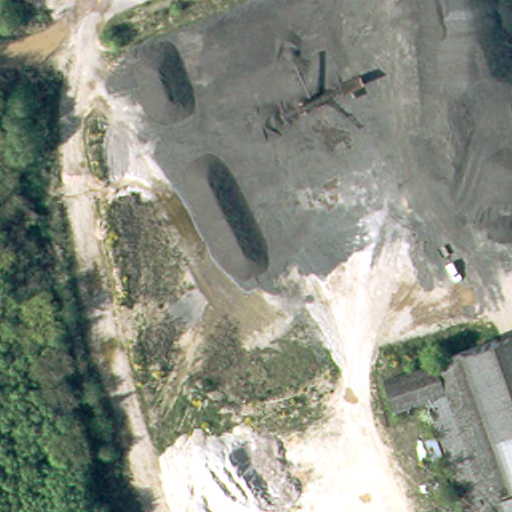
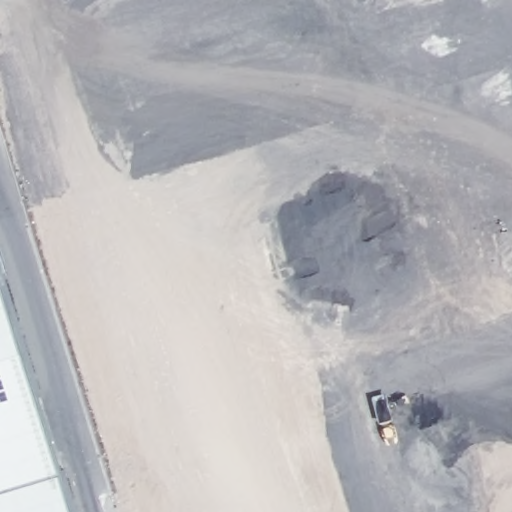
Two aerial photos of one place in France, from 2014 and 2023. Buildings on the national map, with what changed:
new [(0,276),(72,512),(0,512),(0,276)]
unchanged [(388,382),(437,364),(436,363),(512,335),(512,512),(472,512),(470,512),(430,403),(399,414),(388,382)]

